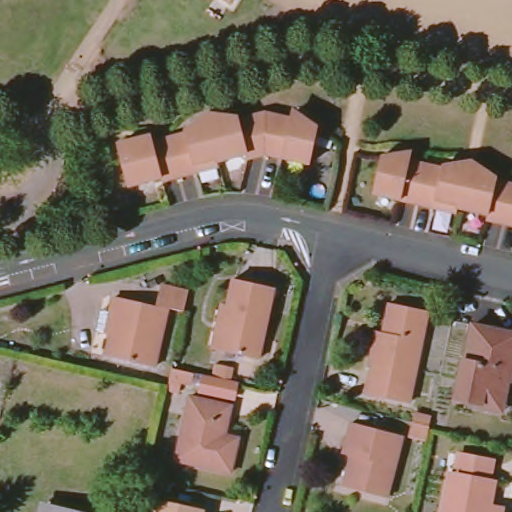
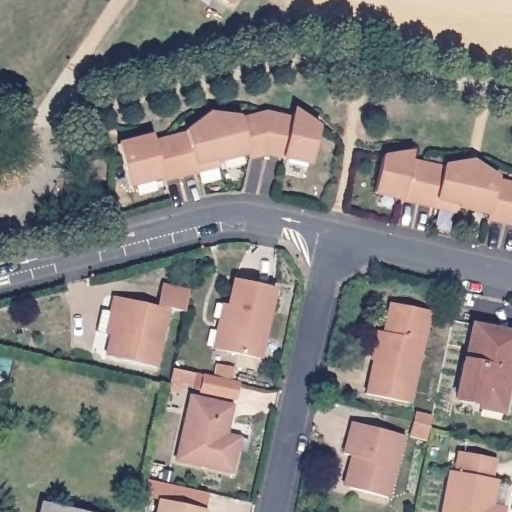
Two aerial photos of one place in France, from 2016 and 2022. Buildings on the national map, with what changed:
unchanged [(228,0),(235,0),(233,3),(228,0)]
unchanged [(112,140),(130,136),(147,132),(150,139),(180,131),(179,128),(187,125),(193,121),(201,119),(208,116),(217,115),(225,115),(234,114),(235,116),(244,114),(260,109),(286,115),(287,110),(297,114),(306,117),(314,122),(307,160),(260,151),(260,154),(243,158),(242,154),(212,161),(213,165),(158,177),(156,174),(123,182),(112,140)]
unchanged [(481,216),(481,212),(456,206),(454,212),(371,194),(379,155),(387,153),(396,152),(407,152),(407,157),(436,163),(437,160),(445,159),(452,159),(459,159),(466,160),(474,162),(480,165),(487,167),(494,171),(493,176),(512,181),(512,222),(481,216)]
unchanged [(221,305),(226,305),(232,279),(272,288),(257,360),(222,352),(211,349),(221,305)]
unchanged [(157,303),(162,284),(187,290),(182,309),(157,303)]
unchanged [(167,308),(155,365),(105,355),(110,333),(96,330),(101,308),(110,310),(113,295),(167,308)]
unchanged [(408,403),(366,394),(375,357),(373,356),(380,328),(385,329),(391,304),(397,305),(429,313),(408,403)]
unchanged [(481,406),(455,400),(465,360),(466,360),(474,326),(512,335),(512,372),(508,372),(506,381),(510,381),(504,401),(501,410),(481,406)]
unchanged [(167,363),(188,368),(185,380),(165,375),(167,363)]
unchanged [(232,445),(226,469),(171,456),(186,393),(226,402),(221,430),(235,434),(232,445)]
unchanged [(352,457),(345,455),(352,423),(403,437),(387,498),(350,488),(345,487),(352,457)]
unchanged [(450,473),(455,475),(458,454),(492,460),(489,480),(494,482),(490,506),(502,509),(502,512),(443,512),(450,473)]
unchanged [(159,499),(204,510),(204,512),(156,512),(159,499)]
unchanged [(50,503),(87,512),(47,512),(50,503)]

